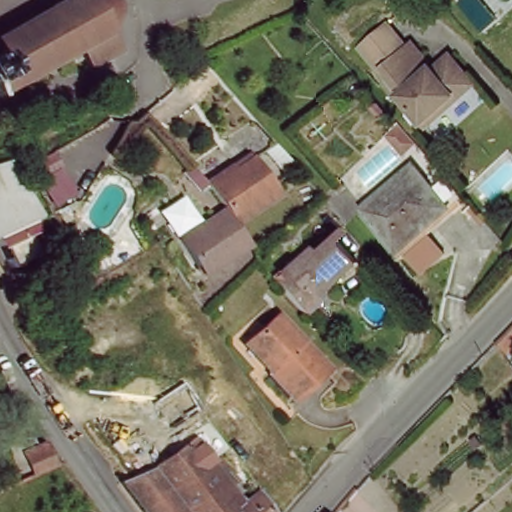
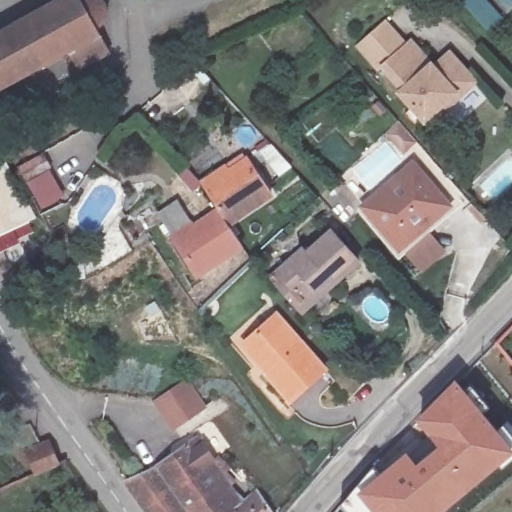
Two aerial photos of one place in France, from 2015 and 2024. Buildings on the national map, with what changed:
unchanged [(130,0),(131,2),(132,10),(125,19),(113,26),(124,44),(95,59),(84,43),(0,84),(0,17),(32,0),(130,0)]
unchanged [(478,115),(473,111),(457,126),(460,130),(445,143),(416,114),(421,109),(401,86),(394,86),(376,66),(402,44),(423,66),(428,62),(451,88),(467,75),(484,93),(491,101),(478,115)]
unchanged [(220,214),(203,194),(246,154),(276,188),(231,226),(220,214)]
unchanged [(6,163),(37,211),(17,220),(32,246),(12,258),(0,234),(0,165),(6,163)]
unchanged [(417,164),(453,208),(402,248),(367,206),(417,164)]
unchanged [(246,243),(203,277),(179,245),(220,214),(231,226),(246,243)]
unchanged [(304,247),(309,253),(333,233),(357,262),(333,282),(328,278),(302,299),(278,269),(304,247)]
unchanged [(278,317),(327,371),(292,401),(244,346),(278,317)]
unchanged [(57,364),(77,349),(96,379),(77,392),(57,364)]
new [(418,460),(436,445),(415,419),(456,378),(499,428),(506,422),(512,429),(512,457),(445,512),(373,512),(354,489),(409,449),(418,460)]
new [(190,384),(208,411),(185,427),(167,400),(190,384)]
unchanged [(41,468),(32,446),(55,437),(61,460),(41,468)]
unchanged [(260,512),(148,512),(135,494),(191,460),(223,511),(250,496),(260,512)]
new [(354,489),(373,512),(347,512),(340,504),(354,489)]

